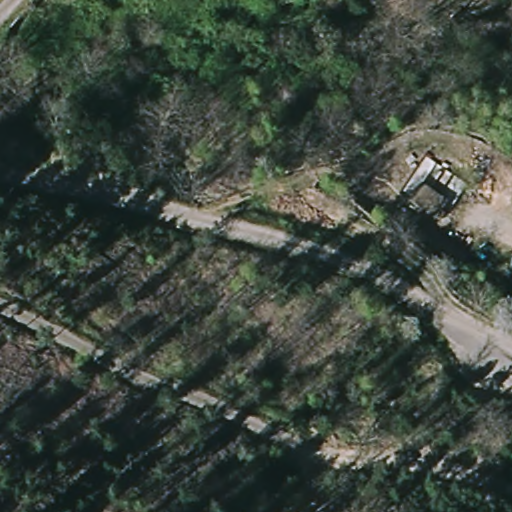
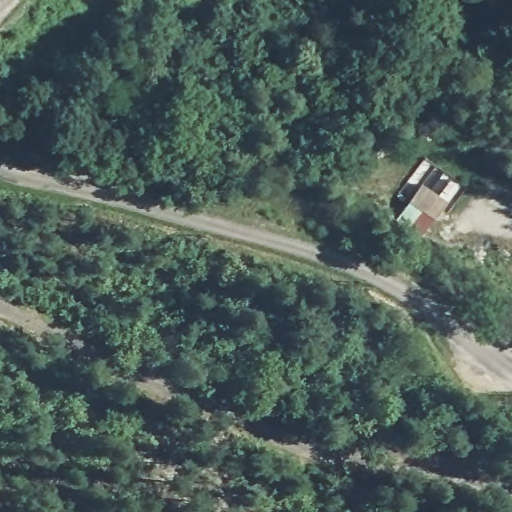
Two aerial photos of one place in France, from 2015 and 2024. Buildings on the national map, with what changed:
unchanged [(411,204),(421,185),(451,200),(435,219),(411,204)]

